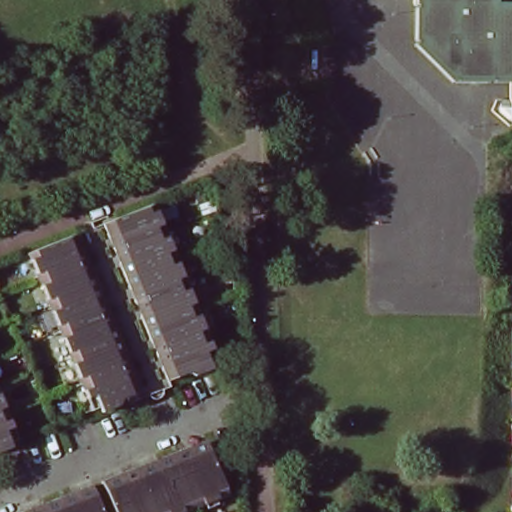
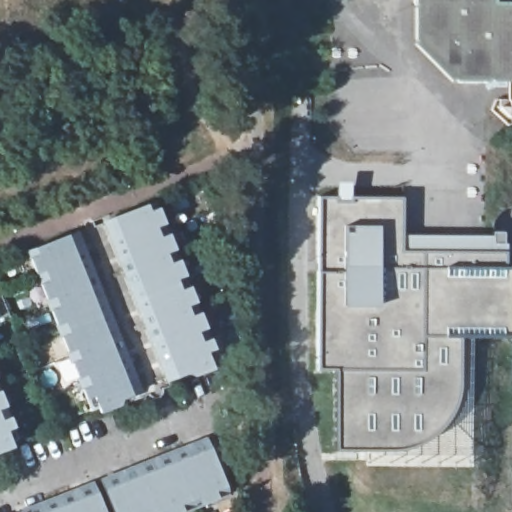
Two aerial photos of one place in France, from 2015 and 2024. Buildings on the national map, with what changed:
unchanged [(494,76),(489,80),(486,76),(456,76),(451,79),(417,40),(420,38),(415,33),(416,6),(420,4),(416,0),(512,0),(512,76),(494,76)]
new [(343,196),(343,180),(359,180),(359,193),(407,195),(407,231),(512,233),(512,331),(470,331),(471,389),(466,400),(461,414),(450,425),(439,436),(427,442),(419,445),(344,443),(344,365),(326,365),(327,196),(343,196)]
unchanged [(161,204),(222,362),(172,381),(109,224),(161,204)]
unchanged [(137,392),(88,411),(24,255),(75,234),(137,392)]
unchanged [(0,447),(0,393),(19,439),(0,447)]
unchanged [(229,490),(173,512),(117,512),(103,476),(206,435),(229,490)]
unchanged [(94,479),(107,512),(18,512),(17,510),(94,479)]

